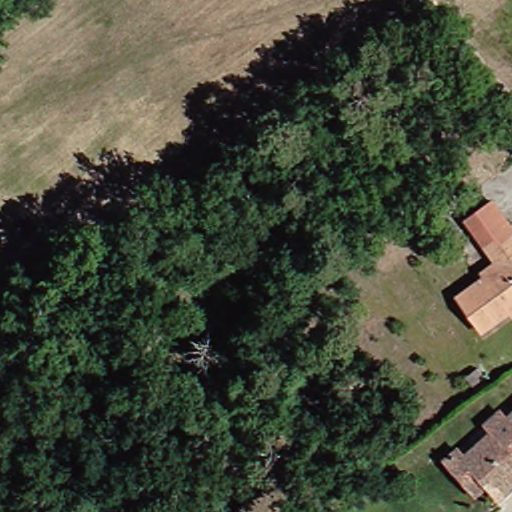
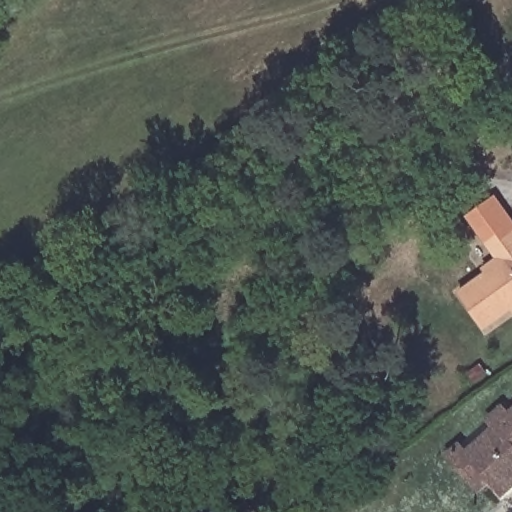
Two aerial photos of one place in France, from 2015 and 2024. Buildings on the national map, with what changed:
unchanged [(459,215),(484,197),(508,232),(508,237),(512,242),(512,310),(477,334),(450,296),(496,264),(459,215)]
unchanged [(449,444),(454,451),(471,439),(487,426),(480,417),(496,404),(503,412),(512,405),(512,476),(489,493),(476,479),(466,489),(436,453),(449,444)]

